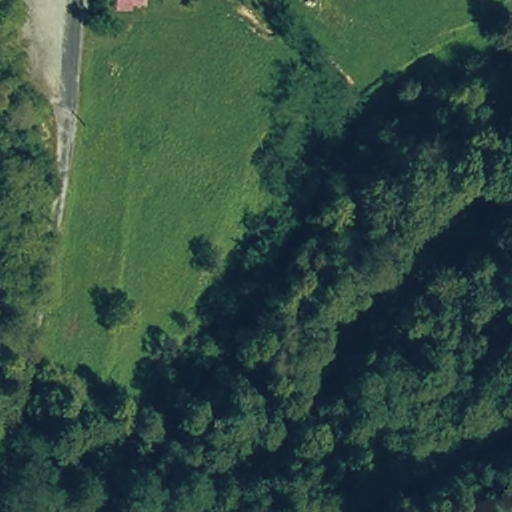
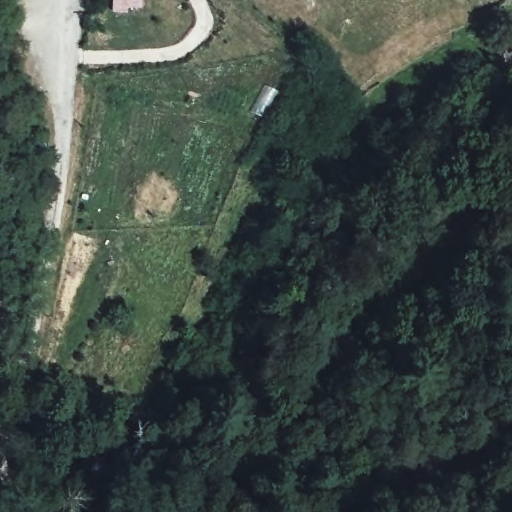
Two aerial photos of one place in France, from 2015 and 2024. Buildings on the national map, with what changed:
unchanged [(118,22),(119,0),(147,0),(147,23),(118,22)]

